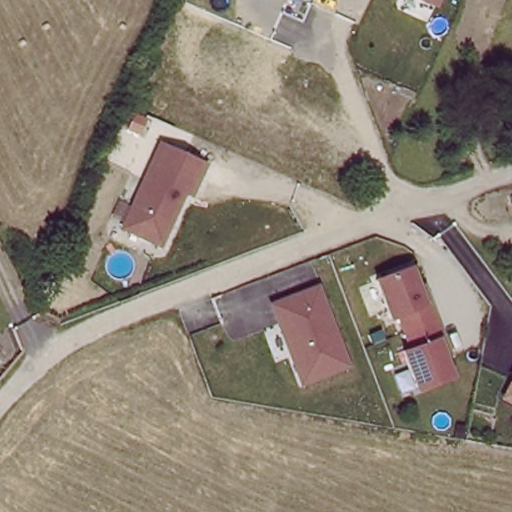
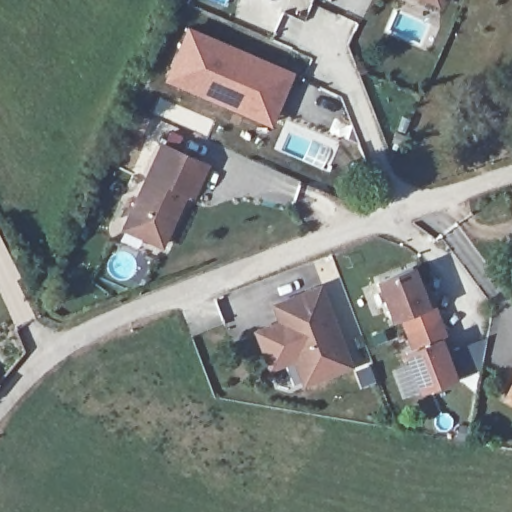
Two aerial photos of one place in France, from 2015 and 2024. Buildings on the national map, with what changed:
unchanged [(438,6),(422,0),(441,0),(438,6)]
new [(185,24),(296,69),(270,126),(162,79),(185,24)]
unchanged [(163,144),(208,164),(194,194),(188,191),(163,245),(126,228),(163,144)]
unchanged [(388,313),(373,274),(407,261),(415,282),(420,280),(427,297),(434,314),(403,326),(396,310),(388,313)]
unchanged [(271,306),(320,286),(352,368),(303,387),(271,306)]
unchanged [(440,332),(447,349),(441,351),(449,372),(416,385),(401,346),(409,343),(403,326),(434,314),(440,332)]
unchanged [(512,379),(512,402),(503,397),(512,379)]

